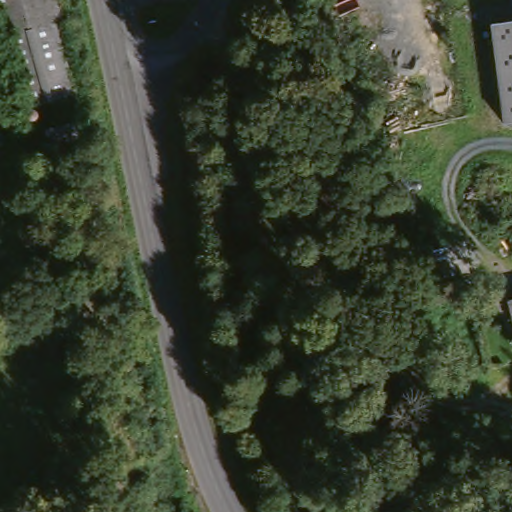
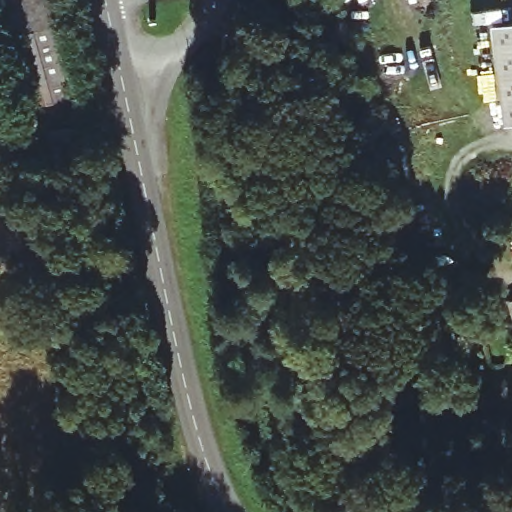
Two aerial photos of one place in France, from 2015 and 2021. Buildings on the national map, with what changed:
unchanged [(83,93),(26,107),(3,29),(0,21),(0,0),(55,0),(83,93)]
unchanged [(491,24),(512,20),(512,124),(502,125),(491,24)]
unchanged [(3,29),(0,30),(0,21),(3,29)]

